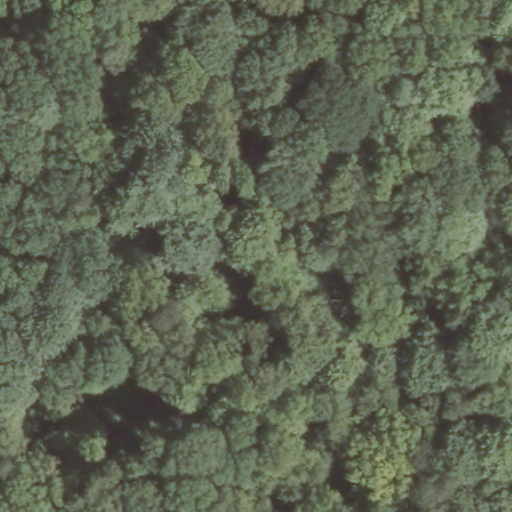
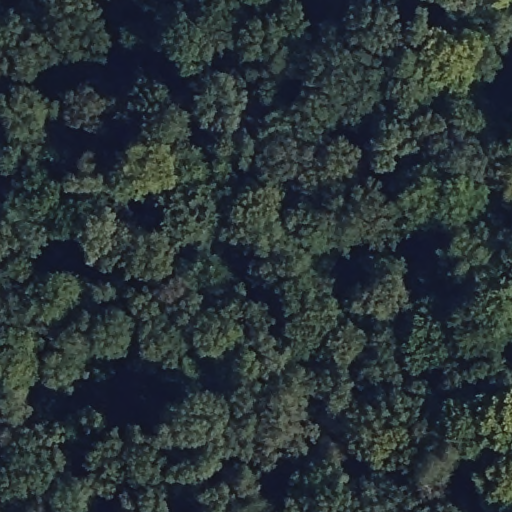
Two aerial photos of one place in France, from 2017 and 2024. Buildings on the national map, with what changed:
unchanged [(489,101),(512,95),(512,116),(496,123),(489,101)]
unchanged [(455,124),(428,121),(429,100),(457,105),(455,124)]

